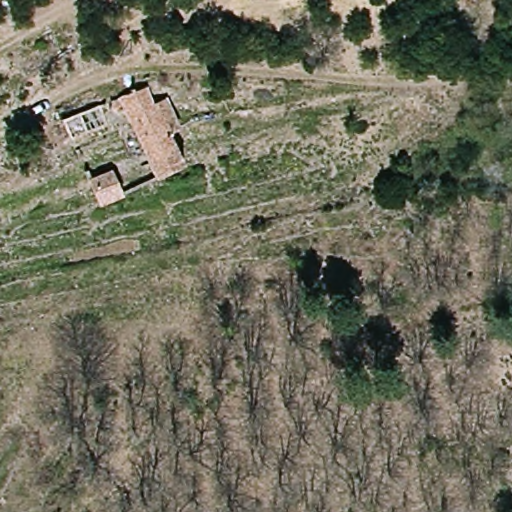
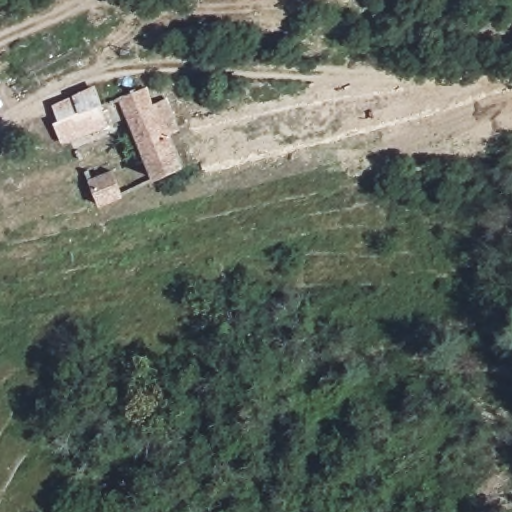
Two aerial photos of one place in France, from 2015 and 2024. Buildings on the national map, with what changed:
new [(72,138),(61,143),(53,124),(58,121),(52,106),(72,97),(95,86),(102,104),(108,126),(72,138)]
unchanged [(181,129),(172,143),(181,168),(153,178),(120,96),(155,86),(158,104),(173,102),(181,129)]
demolished [(108,126),(72,138),(67,119),(102,104),(108,126)]
unchanged [(125,199),(99,207),(90,179),(113,169),(125,199)]

